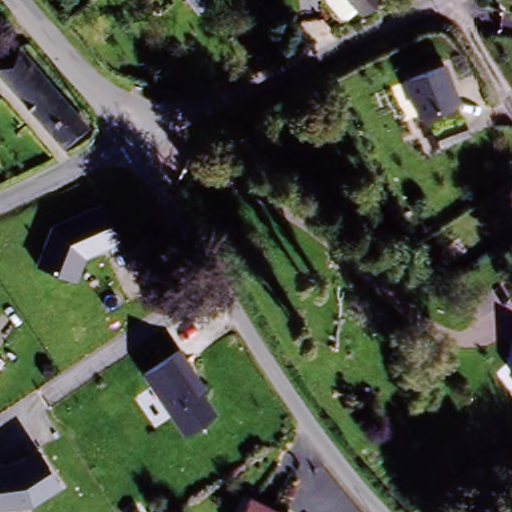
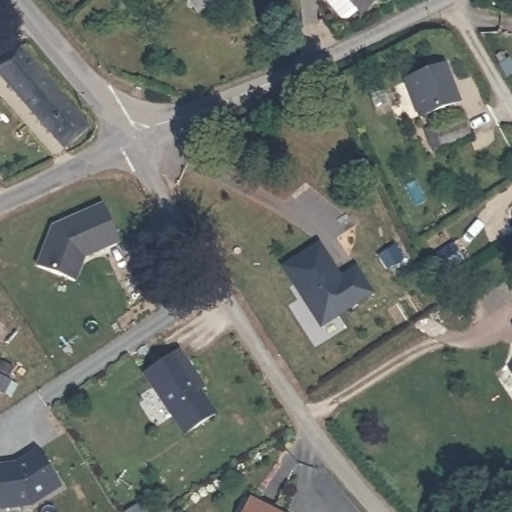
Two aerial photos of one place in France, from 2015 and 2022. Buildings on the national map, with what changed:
unchanged [(198,13),(186,0),(187,0),(212,0),(198,13)]
unchanged [(336,20),(321,3),(320,0),(375,0),(356,16),(353,12),(342,21),(336,20)]
unchanged [(66,152),(0,78),(0,67),(17,47),(89,133),(66,152)]
unchanged [(455,103),(416,119),(402,80),(442,66),(455,103)]
unchanged [(443,148),(435,132),(465,118),(473,135),(443,148)]
unchanged [(76,281),(34,266),(49,227),(103,204),(119,246),(85,258),(76,281)]
new [(319,246),(338,282),(354,273),(368,299),(316,327),(284,265),(319,246)]
unchanged [(178,352),(218,413),(184,437),(142,376),(178,352)]
unchanged [(512,370),(512,377),(509,373),(512,370)]
unchanged [(59,490),(31,508),(2,512),(0,512),(0,467),(15,465),(37,451),(59,490)]
unchanged [(275,512),(244,512),(251,500),(275,512)]

